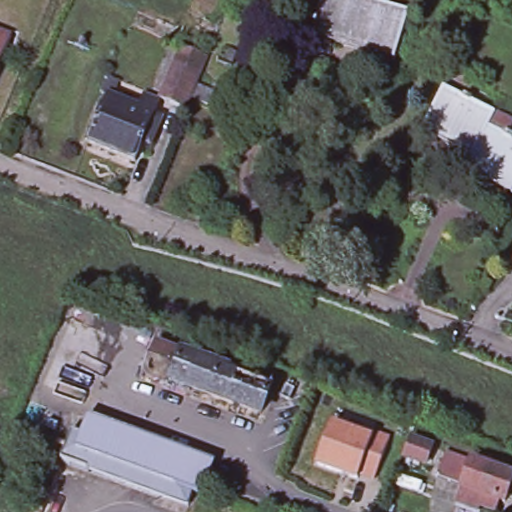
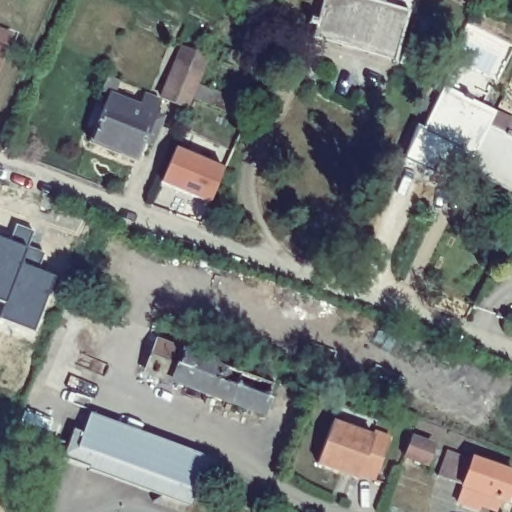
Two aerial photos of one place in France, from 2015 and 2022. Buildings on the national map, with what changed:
unchanged [(392,60),(394,54),(370,47),(368,54),(311,37),(315,25),(308,23),(309,16),(317,19),(322,0),(375,0),(411,10),(396,62),(392,60)]
unchanged [(12,33),(0,64),(0,28),(12,33)]
unchanged [(181,107),(156,97),(171,62),(173,63),(178,47),(201,56),(191,83),(242,104),(238,117),(190,100),(185,97),(181,107)]
unchanged [(139,96),(154,102),(130,161),(83,141),(102,94),(95,91),(103,75),(115,80),(109,97),(134,106),(139,96)]
unchanged [(489,125),(471,157),(422,132),(444,86),(495,111),(489,125)]
unchanged [(163,115),(151,146),(144,143),(136,163),(130,161),(154,102),(141,97),(143,91),(156,96),(156,97),(161,100),(156,113),(163,115)]
unchanged [(512,193),(464,170),(471,157),(489,125),(512,136),(512,193)]
new [(224,167),(209,204),(159,183),(174,147),(224,167)]
new [(28,247),(23,261),(57,275),(37,331),(0,318),(8,301),(0,298),(0,237),(28,247)]
unchanged [(239,366),(271,378),(269,384),(271,385),(260,412),(172,380),(146,371),(157,343),(183,352),(237,372),(239,366)]
unchanged [(121,467),(118,461),(103,470),(98,462),(98,461),(97,460),(69,450),(81,418),(91,423),(96,409),(113,415),(115,416),(113,422),(203,455),(199,467),(193,485),(131,465),(121,467)]
unchanged [(363,473),(361,478),(320,462),(336,421),(376,437),(378,432),(394,438),(378,480),(363,473)]
unchanged [(434,446),(427,464),(408,457),(411,450),(415,439),(434,446)]
unchanged [(474,499),(472,505),(453,497),(458,481),(433,471),(443,445),(468,455),(509,470),(506,480),(511,482),(508,491),(503,489),(500,497),(494,495),(490,505),(474,499)]

